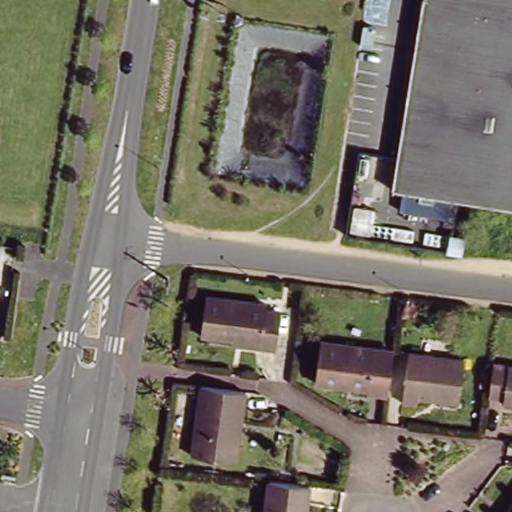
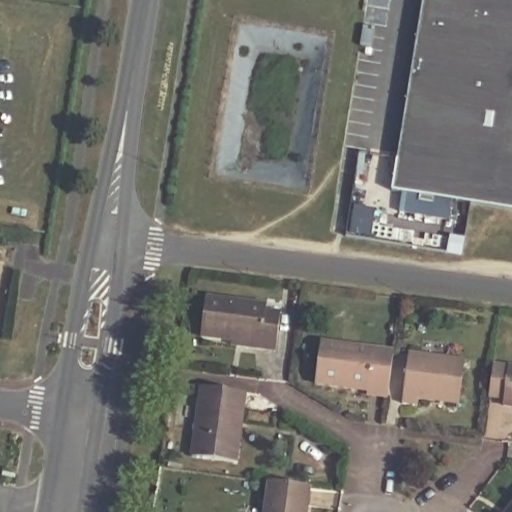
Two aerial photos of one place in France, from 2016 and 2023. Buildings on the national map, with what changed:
unchanged [(422,0),(447,0),(512,11),(512,205),(392,185),(422,0)]
unchanged [(447,0),(512,0),(512,11),(447,0)]
unchanged [(236,335),(204,330),(210,292),(271,300),(271,304),(284,305),(279,347),(264,344),(236,340),(236,335)]
unchanged [(369,389),(369,384),(315,377),(321,337),(396,347),(391,392),(369,389)]
unchanged [(466,359),(461,400),(420,394),(419,403),(404,401),(411,351),(466,359)]
unchanged [(491,361),(512,363),(512,402),(501,401),(502,395),(487,393),(491,361)]
unchanged [(234,461),(192,456),(201,387),(227,390),(243,392),(234,461)]
unchanged [(311,486),(307,512),(266,512),(271,481),(311,486)]
unchanged [(512,508),(512,512),(509,512),(512,508)]

